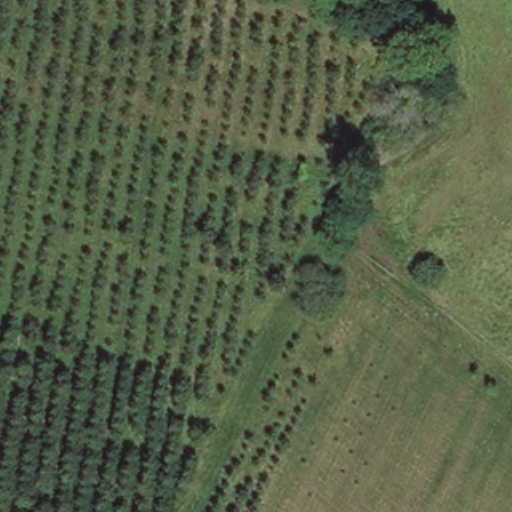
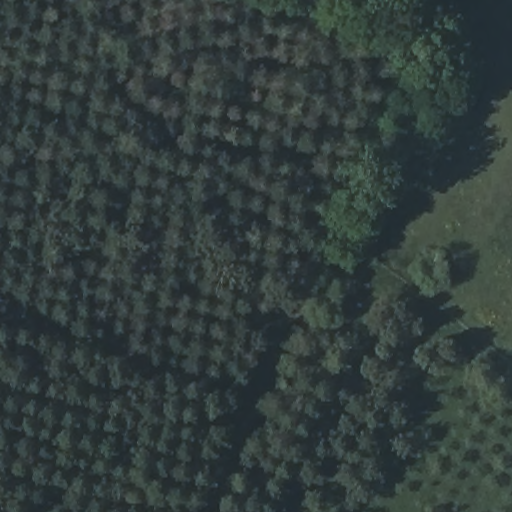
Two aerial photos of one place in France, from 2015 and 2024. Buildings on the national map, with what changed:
[]

